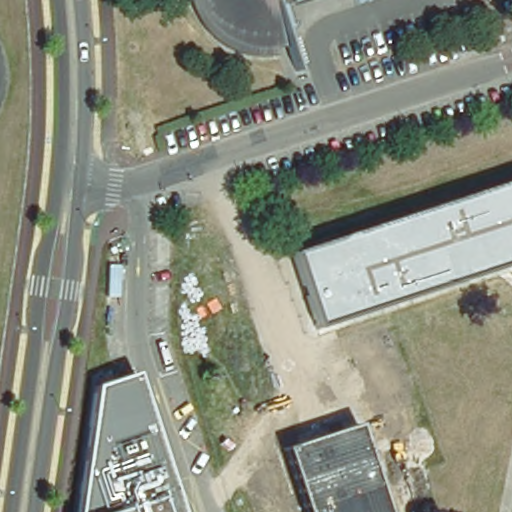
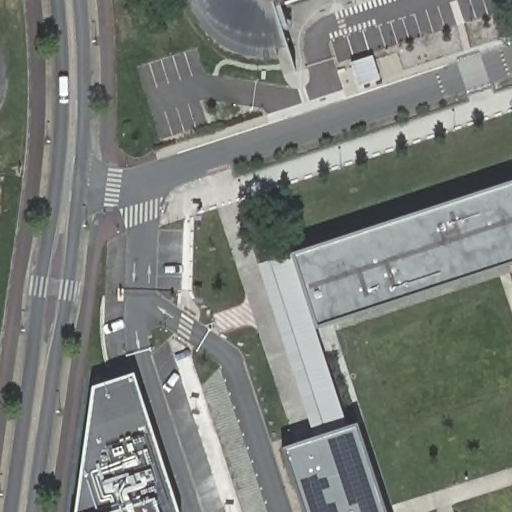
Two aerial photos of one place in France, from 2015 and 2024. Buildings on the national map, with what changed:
unchanged [(271,57),(264,58),(260,58),(250,58),(244,57),(239,56),(236,55),(230,53),(222,50),(215,47),(210,43),(199,29),(189,14),(185,5),(183,0),(291,0),(268,7),(275,30),(281,47),(270,50),(271,57)]
unchanged [(512,260),(315,325),(291,252),(512,180),(512,260)]
new [(291,252),(315,325),(347,423),(314,435),(258,263),(291,252)]
unchanged [(179,512),(76,512),(92,386),(133,373),(179,512)]
unchanged [(314,435),(347,423),(353,421),(383,512),(300,512),(278,448),(314,435)]

